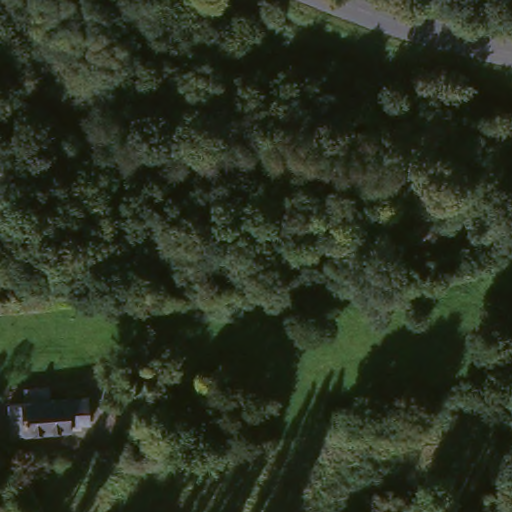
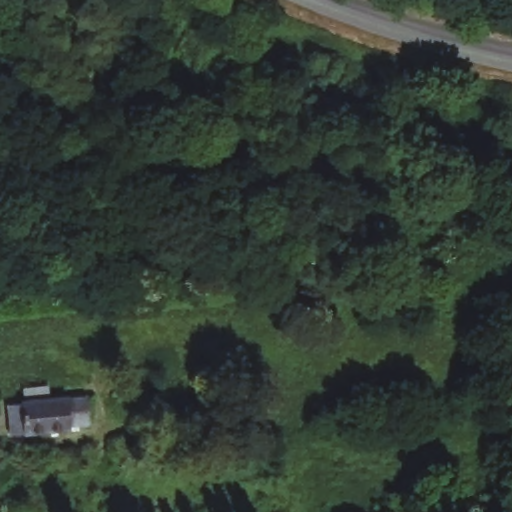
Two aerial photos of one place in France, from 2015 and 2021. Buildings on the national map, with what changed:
unchanged [(22,387),(48,383),(51,395),(59,394),(61,394),(92,393),(94,417),(74,420),(74,429),(27,433),(14,434),(11,400),(23,399),(22,387)]

